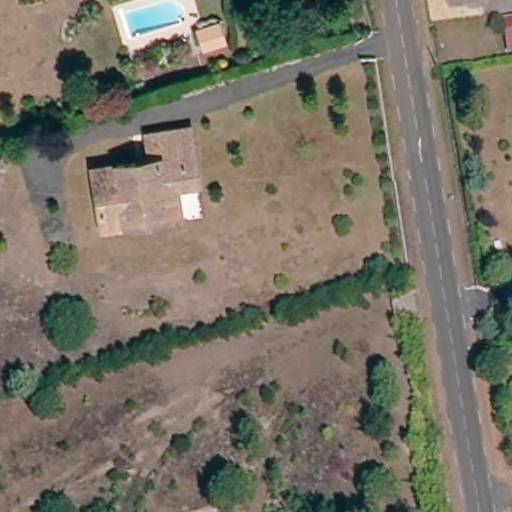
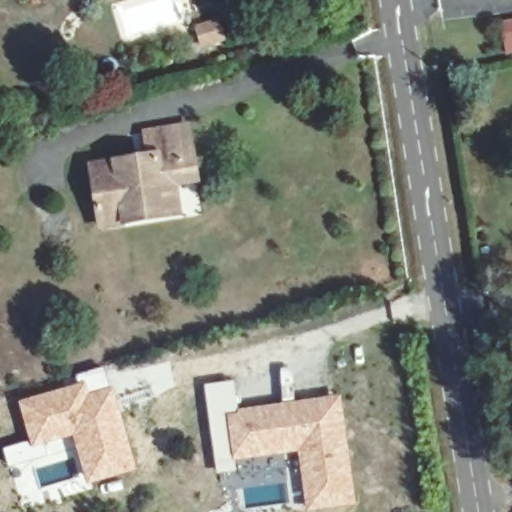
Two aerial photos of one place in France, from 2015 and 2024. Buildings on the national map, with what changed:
unchanged [(130,224),(102,229),(91,167),(148,159),(145,132),(189,126),(193,157),(197,178),(175,182),(180,216),(130,224)]
new [(77,383),(75,376),(105,367),(112,385),(137,470),(86,485),(71,437),(31,448),(17,401),(77,383)]
new [(352,500),(312,507),(303,446),(263,452),(240,456),(242,469),(238,470),(220,472),(212,418),(207,387),(232,384),(237,415),(337,400),(352,500)]

